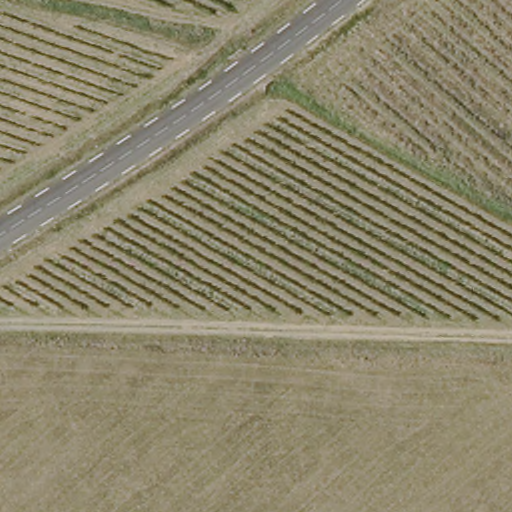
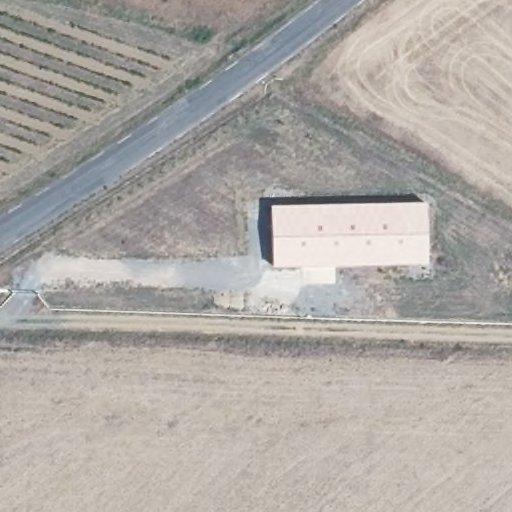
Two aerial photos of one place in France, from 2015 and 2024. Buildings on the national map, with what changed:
new [(426,201),(428,263),(335,267),(311,267),(271,267),(269,204),(426,201)]

